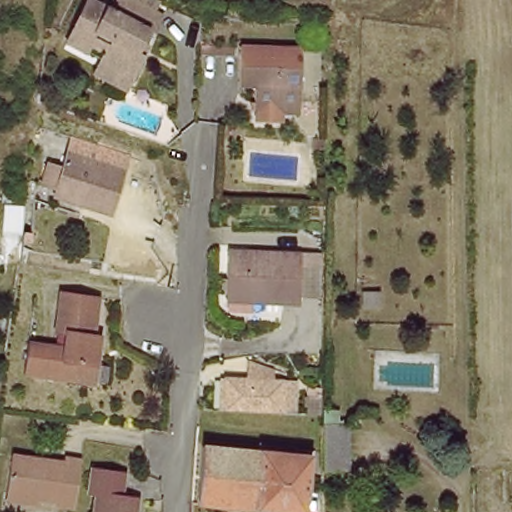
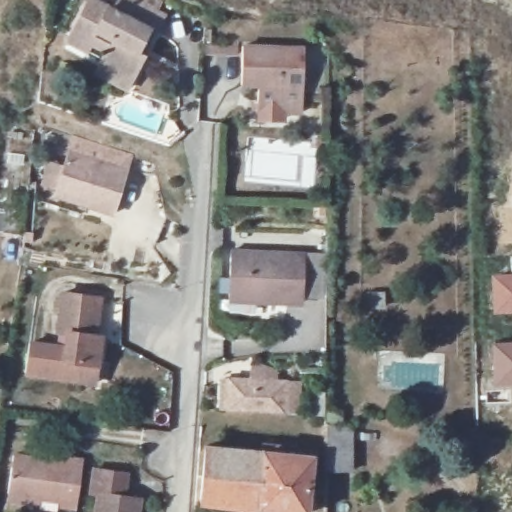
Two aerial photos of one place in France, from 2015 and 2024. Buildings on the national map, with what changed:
unchanged [(96,75),(100,64),(68,47),(85,12),(107,24),(115,8),(120,0),(132,0),(160,14),(154,26),(158,28),(127,92),(122,103),(91,87),(96,75)]
unchanged [(245,39),(245,53),(212,52),(213,37),(245,39)]
unchanged [(262,125),(262,117),(263,89),(244,89),(245,53),(310,55),(309,91),(308,118),(292,117),(292,126),(262,125)]
unchanged [(65,148),(122,167),(108,211),(50,192),(65,148)]
unchanged [(306,258),(303,308),(230,302),(232,255),(306,258)]
new [(510,256),(512,255),(512,313),(491,313),(490,272),(510,272),(510,256)]
unchanged [(83,382),(23,375),(27,347),(63,351),(63,333),(55,330),(58,295),(101,299),(97,336),(102,337),(101,364),(100,384),(83,382)]
new [(512,386),(492,387),(491,342),(512,341),(512,386)]
unchanged [(218,382),(222,382),(223,377),(250,378),(251,362),(279,371),(278,382),(301,382),(300,414),(215,410),(218,382)]
unchanged [(331,425),(355,425),(355,474),(331,472),(331,425)]
unchanged [(315,453),(313,509),(202,501),(205,446),(315,453)]
unchanged [(50,506),(51,500),(5,490),(12,456),(63,466),(65,456),(84,460),(75,512),(50,506)]
unchanged [(125,477),(122,496),(142,501),(140,512),(95,512),(98,494),(90,492),(94,472),(125,477)]

